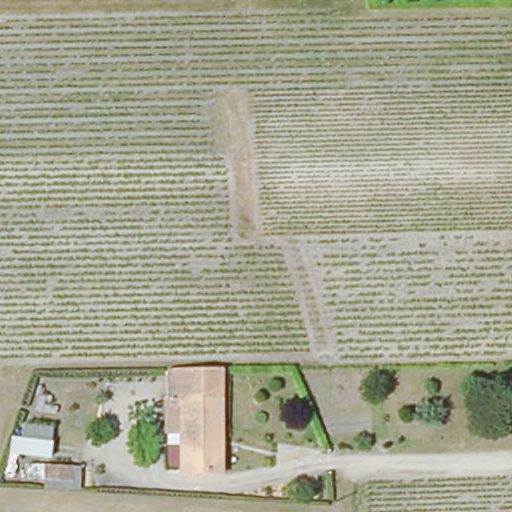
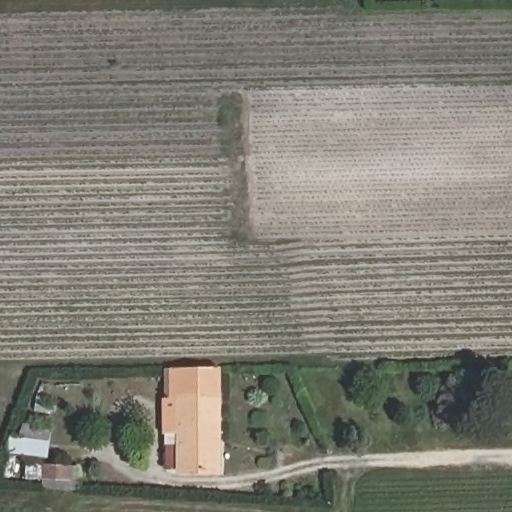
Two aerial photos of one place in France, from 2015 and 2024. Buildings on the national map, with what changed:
unchanged [(171,401),(171,373),(179,373),(180,399),(180,405),(192,405),(195,474),(180,474),(180,432),(164,433),(163,401),(171,401)]
unchanged [(221,399),(180,399),(179,373),(220,373),(221,399)]
unchanged [(225,474),(195,474),(192,405),(180,405),(180,399),(221,399),(225,474)]
unchanged [(8,456),(10,439),(21,438),(24,426),(51,426),(49,458),(8,456)]
unchanged [(79,493),(41,491),(41,480),(19,477),(20,461),(81,465),(79,493)]

